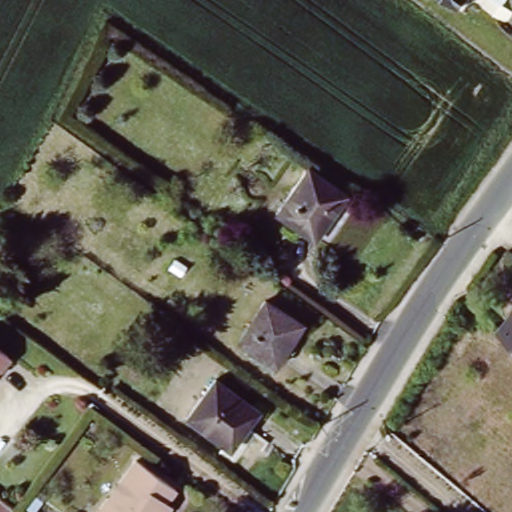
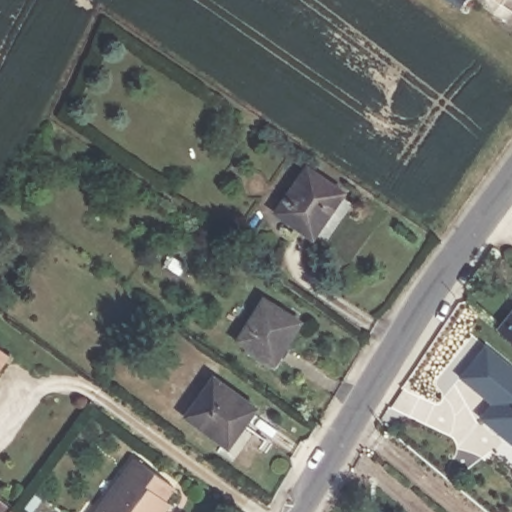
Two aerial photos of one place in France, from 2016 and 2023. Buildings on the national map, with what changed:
unchanged [(455,0),(472,0),(467,8),(455,0)]
unchanged [(321,238),(284,215),(312,167),(350,189),(321,238)]
unchanged [(277,364),(246,343),(273,299),(306,321),(277,364)]
unchanged [(502,333),(512,319),(512,340),(502,333)]
new [(487,344),(512,364),(512,443),(481,418),(492,403),(460,377),(487,344)]
unchanged [(0,346),(14,356),(0,374),(0,346)]
unchanged [(246,427),(237,421),(223,442),(189,417),(218,378),(260,408),(246,427)]
unchanged [(162,512),(102,512),(142,458),(181,487),(162,512)]

